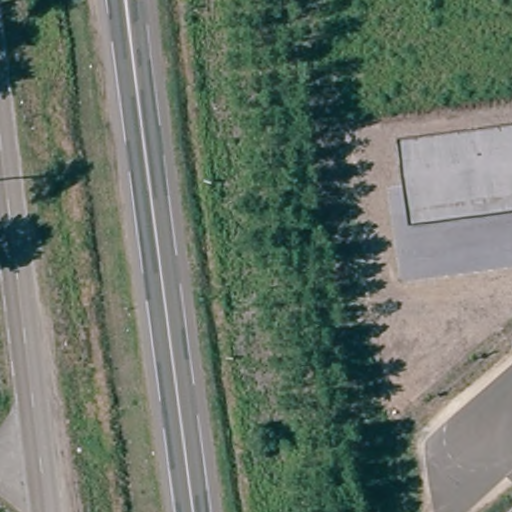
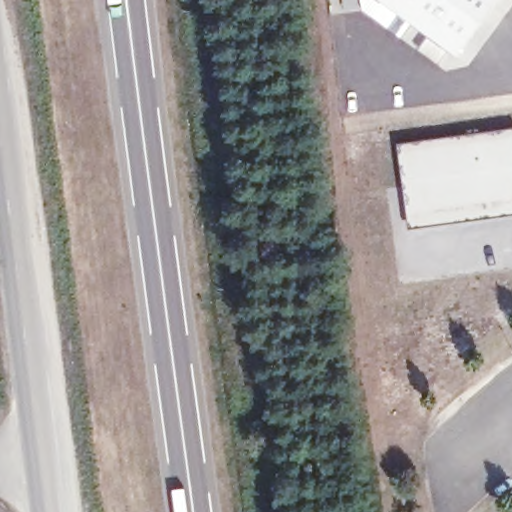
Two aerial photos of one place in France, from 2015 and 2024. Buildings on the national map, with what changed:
new [(377,0),(497,0),(457,56),(377,0)]
unchanged [(408,229),(395,142),(512,128),(512,214),(408,229)]

